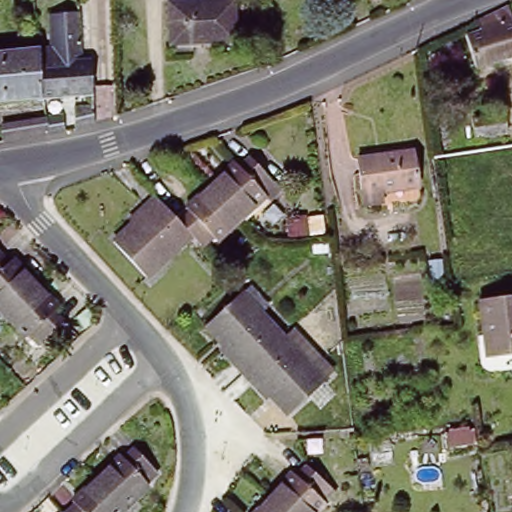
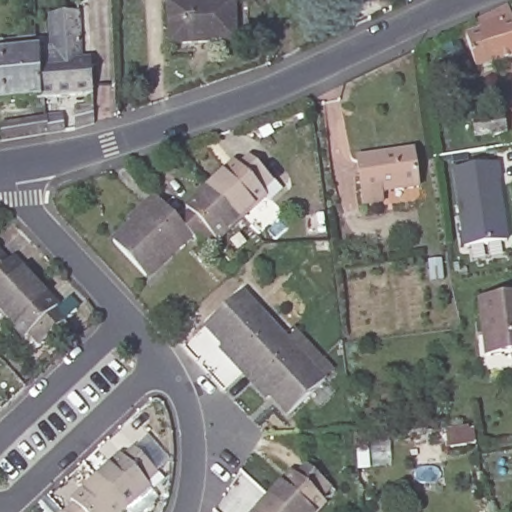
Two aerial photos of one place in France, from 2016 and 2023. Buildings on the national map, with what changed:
unchanged [(175,50),(173,0),(241,0),(242,47),(175,50)]
unchanged [(483,70),(472,36),(486,32),(483,22),(512,8),(512,61),(483,70)]
unchanged [(52,48),(50,14),(78,13),(82,62),(93,61),(95,95),(45,99),(40,99),(37,49),(52,48)]
unchanged [(40,99),(6,101),(1,51),(7,51),(6,40),(37,39),(37,49),(40,99)]
unchanged [(0,101),(0,51),(1,51),(6,101),(0,101)]
unchanged [(76,108),(95,106),(95,115),(96,127),(76,131),(76,108)]
unchanged [(510,141),(502,143),(501,136),(476,140),(475,120),(507,116),(510,141)]
unchanged [(0,126),(46,120),(63,118),(63,133),(47,136),(1,144),(0,126)]
unchanged [(366,200),(365,191),(360,153),(417,146),(421,185),(385,189),(385,199),(366,200)]
unchanged [(218,187),(243,162),(248,168),(260,157),(282,182),(271,192),(274,195),(248,219),(218,187)]
new [(501,164),(503,180),(500,181),(510,244),(468,250),(456,171),(501,164)]
unchanged [(248,219),(223,242),(220,239),(209,250),(196,236),(186,224),(197,214),(193,209),(218,187),(248,219)]
unchanged [(153,277),(121,242),(140,225),(136,222),(162,198),(186,224),(196,236),(153,277)]
unchanged [(0,314),(0,256),(7,263),(11,259),(36,285),(2,317),(0,314)]
unchanged [(59,310),(55,313),(65,325),(40,349),(30,337),(25,341),(2,317),(36,285),(59,310)]
unchanged [(249,373),(225,347),(227,344),(211,326),(247,292),(289,336),(249,373)]
unchanged [(512,300),(512,355),(483,358),(477,303),(512,300)]
unchanged [(289,336),(327,379),(291,413),(275,395),(271,399),(249,373),(289,336)]
unchanged [(100,473),(125,448),(128,451),(138,441),(160,463),(150,474),(152,477),(127,501),(100,473)]
unchanged [(275,498),(297,473),(301,476),(311,465),(336,488),(327,499),(331,503),(324,512),(290,512),(275,498)]
unchanged [(127,501),(116,512),(68,512),(65,510),(76,500),(74,497),(100,473),(127,501)]
unchanged [(275,498),(290,512),(261,512),(275,498)]
unchanged [(65,510),(68,512),(63,512),(65,510)]

